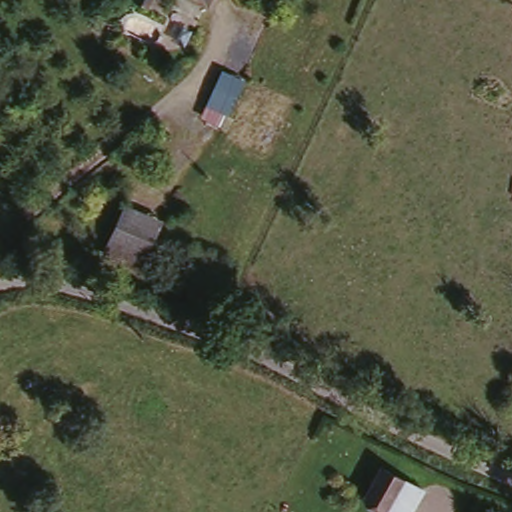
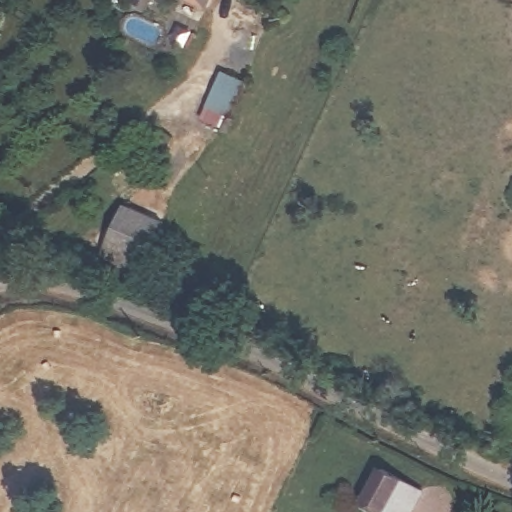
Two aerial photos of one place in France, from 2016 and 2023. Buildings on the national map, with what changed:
unchanged [(181,0),(205,0),(202,8),(181,0)]
unchanged [(222,70),(246,80),(226,130),(200,120),(222,70)]
unchanged [(124,204),(161,220),(141,266),(104,250),(124,204)]
unchanged [(380,467),(424,489),(410,512),(390,512),(362,497),(380,467)]

